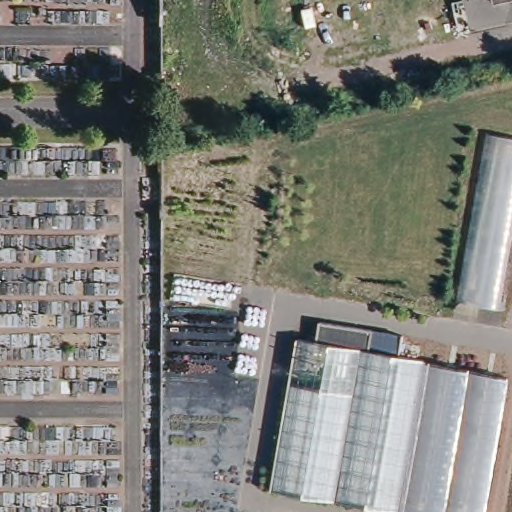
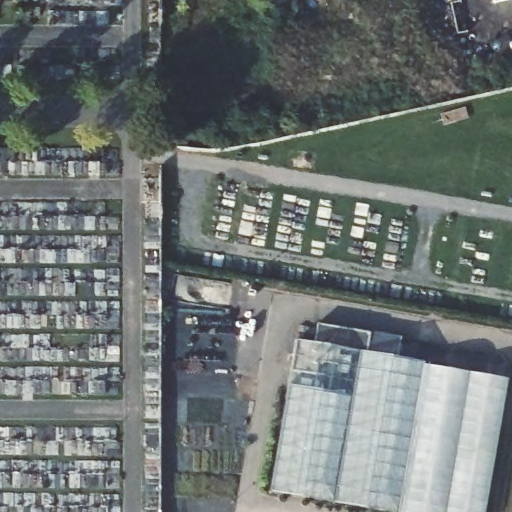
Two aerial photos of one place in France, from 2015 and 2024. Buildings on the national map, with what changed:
unchanged [(492,0),(504,0),(492,2),(492,0)]
demolished [(512,254),(500,324),(455,315),(485,138),(512,142),(512,254)]
unchanged [(318,323),(400,336),(397,356),(377,353),(317,343),(315,343),(318,323)]
unchanged [(271,492),(297,340),(377,353),(424,361),(400,512),(391,512),(271,492)]
unchanged [(510,381),(487,512),(400,512),(422,371),(423,365),(510,381)]

